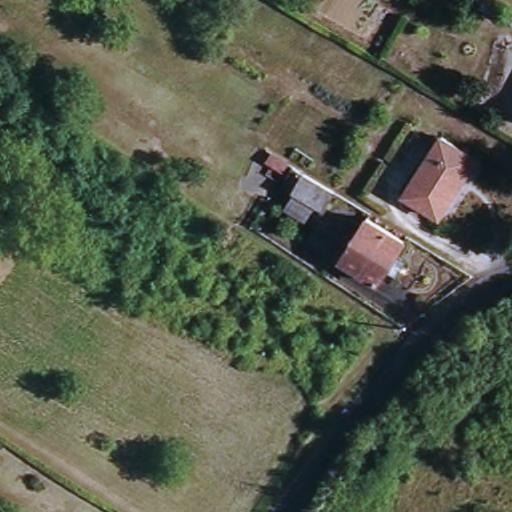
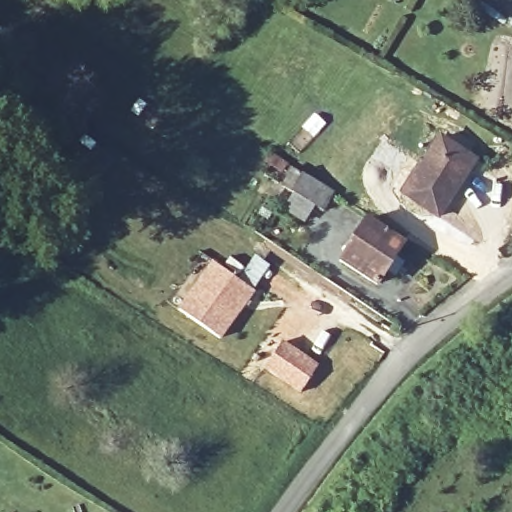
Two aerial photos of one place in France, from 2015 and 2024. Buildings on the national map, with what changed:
unchanged [(403,188),(437,134),(473,156),(439,210),(403,188)]
unchanged [(287,162),(281,172),(264,162),(270,151),(287,162)]
unchanged [(304,176),(334,193),(323,210),(294,192),(304,176)]
unchanged [(377,279),(339,256),(363,218),(400,241),(377,279)]
new [(222,340),(178,309),(213,261),(256,291),(222,340)]
new [(302,390),(268,367),(285,344),(318,367),(302,390)]

